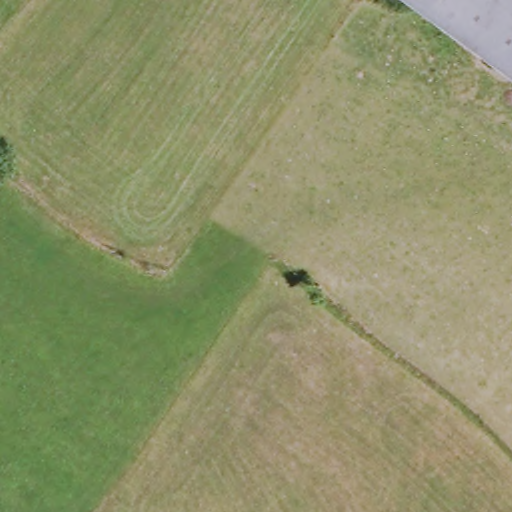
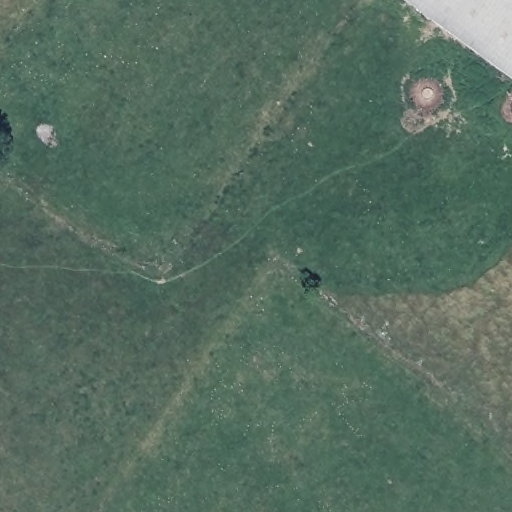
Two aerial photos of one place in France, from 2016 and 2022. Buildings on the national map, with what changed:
unchanged [(412,0),(512,0),(512,79),(412,0)]

